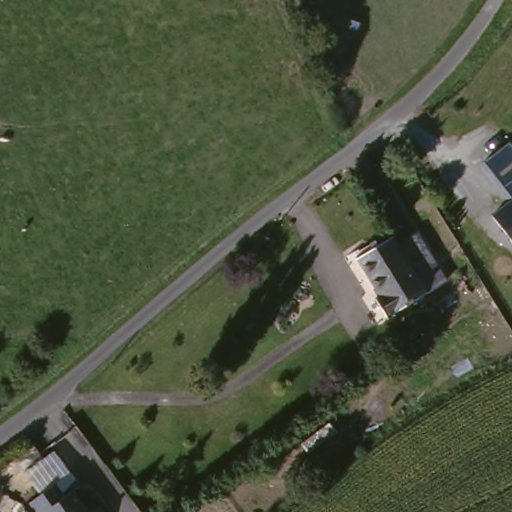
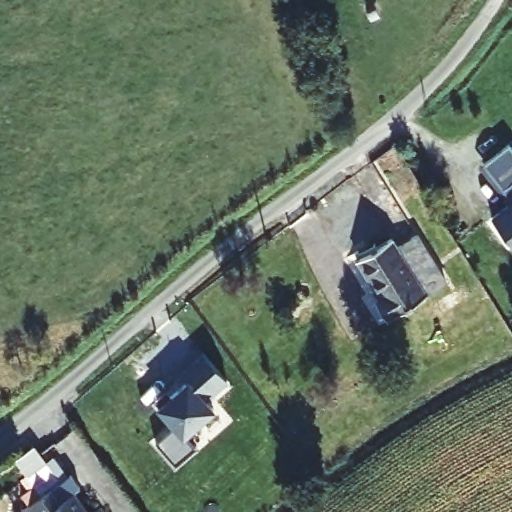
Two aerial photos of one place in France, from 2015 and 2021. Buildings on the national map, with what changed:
unchanged [(512,250),(487,215),(504,202),(480,168),(510,144),(512,146),(512,250)]
unchanged [(373,302),(378,298),(354,259),(389,239),(395,249),(416,237),(445,284),(385,321),(373,302)]
new [(157,441),(174,425),(157,405),(187,377),(179,372),(203,352),(228,380),(207,398),(216,409),(185,435),(194,447),(175,463),(157,441)]
unchanged [(20,510),(54,487),(63,500),(72,495),(84,512),(21,512),(20,510)]
unchanged [(98,510),(100,512),(94,512),(98,510)]

